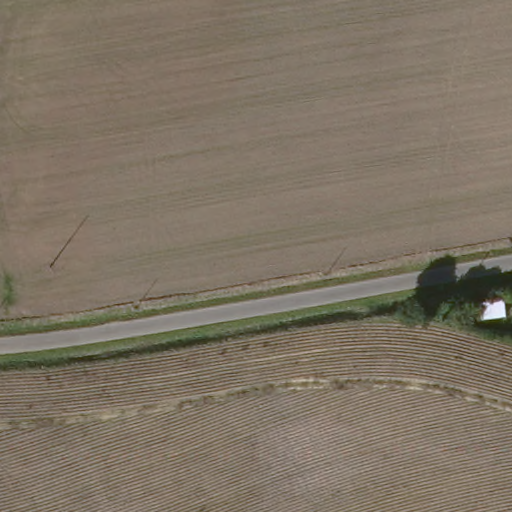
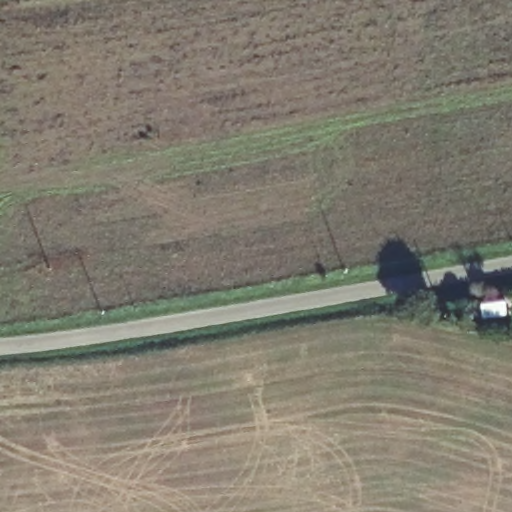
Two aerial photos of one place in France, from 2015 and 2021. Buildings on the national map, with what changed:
unchanged [(506,295),(509,318),(482,320),(479,297),(506,295)]

